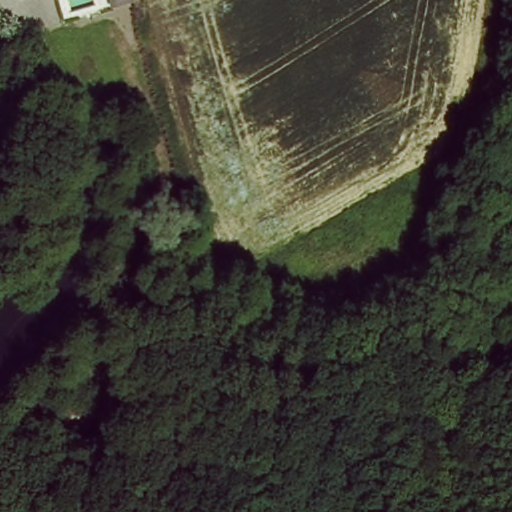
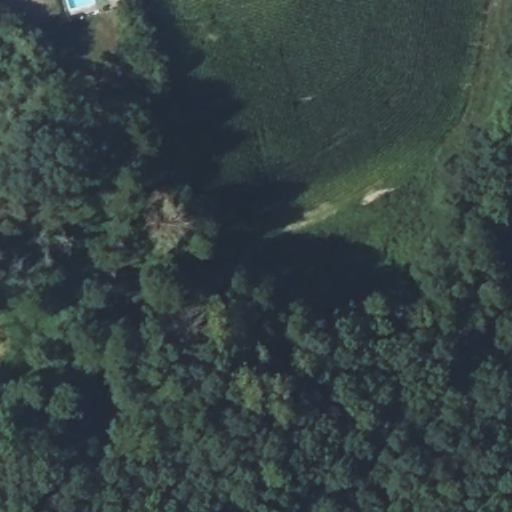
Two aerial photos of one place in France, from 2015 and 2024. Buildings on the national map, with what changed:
unchanged [(113,0),(132,0),(137,15),(118,20),(113,0)]

